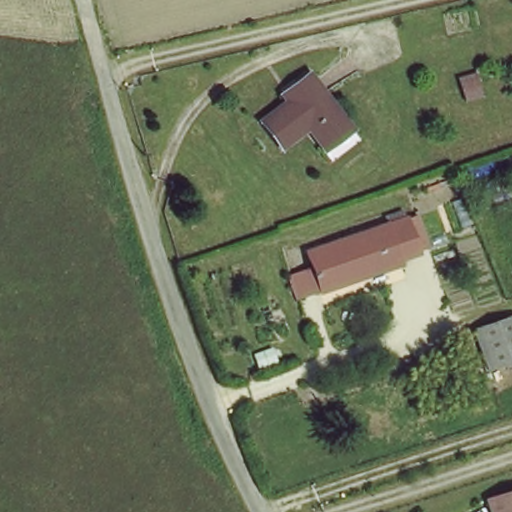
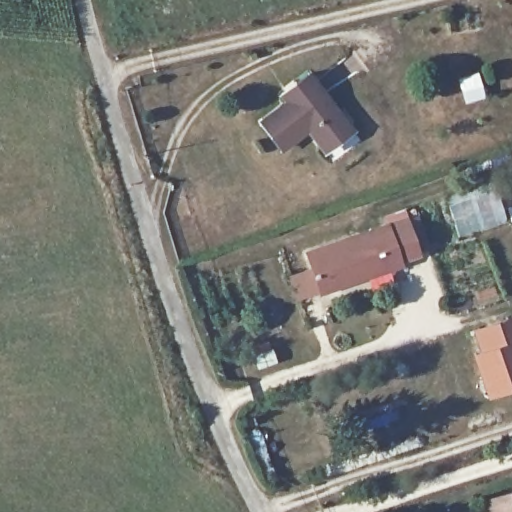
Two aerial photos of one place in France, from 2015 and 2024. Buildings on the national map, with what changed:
unchanged [(353,124),(327,148),(314,131),(288,151),(266,124),(301,93),(297,86),(310,75),(353,124)]
new [(493,181),(507,224),(458,240),(446,199),(493,181)]
unchanged [(410,212),(425,256),(329,294),(316,261),(313,253),(391,222),(410,212)]
unchanged [(470,326),(512,311),(512,361),(485,371),(470,326)]
unchanged [(512,512),(487,512),(481,496),(512,485),(512,512)]

